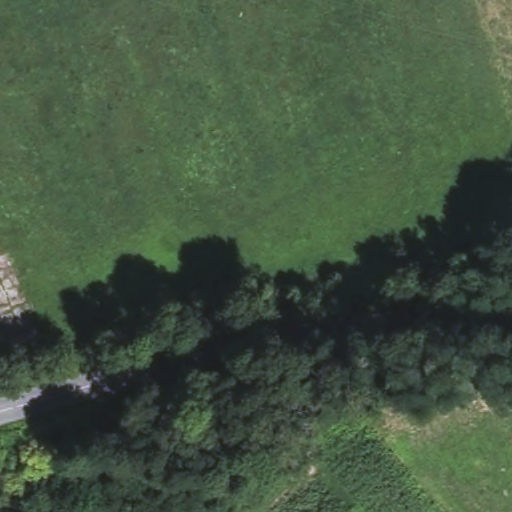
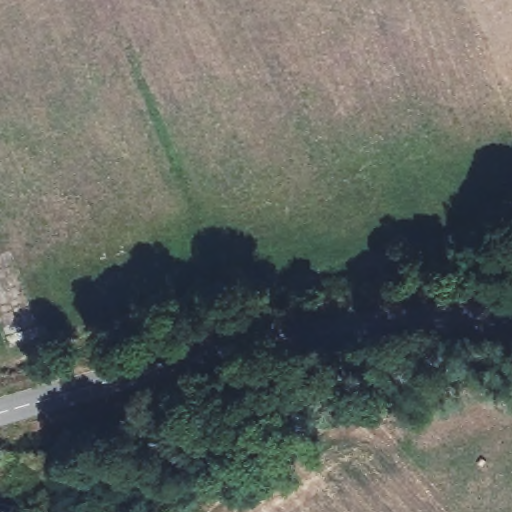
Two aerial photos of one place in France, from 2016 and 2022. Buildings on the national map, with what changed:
[]

